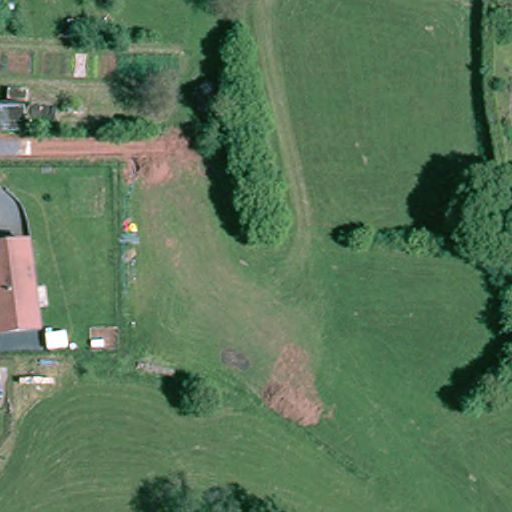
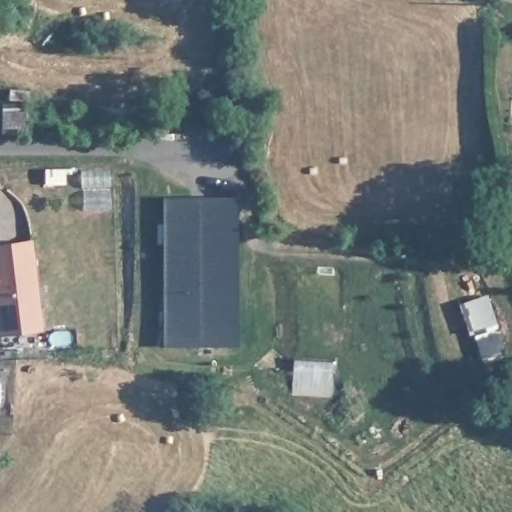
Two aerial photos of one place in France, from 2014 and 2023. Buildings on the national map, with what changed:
new [(239,345),(164,345),(162,195),(235,195),(239,345)]
unchanged [(0,248),(27,245),(36,312),(39,332),(0,337),(0,248)]

